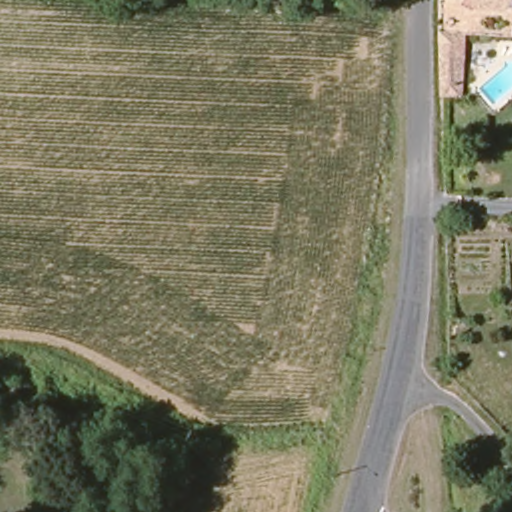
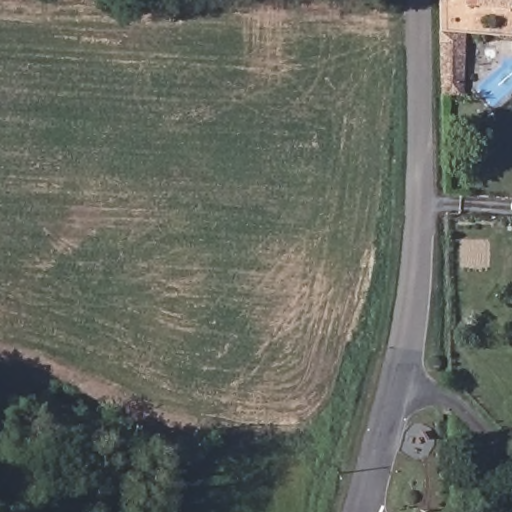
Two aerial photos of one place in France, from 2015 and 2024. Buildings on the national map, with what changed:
unchanged [(474,0),(512,0),(512,13),(473,11),(474,0)]
unchanged [(466,34),(462,99),(440,98),(442,33),(466,34)]

